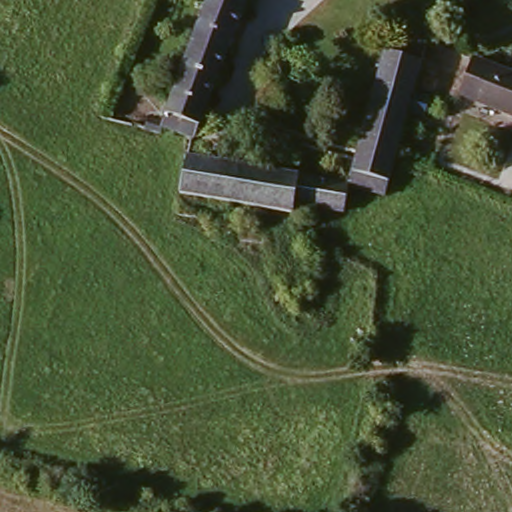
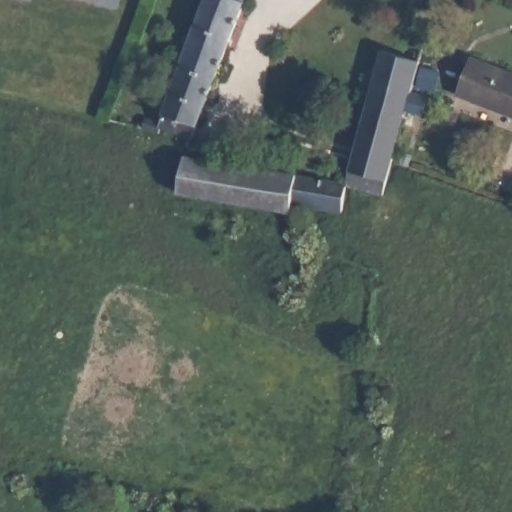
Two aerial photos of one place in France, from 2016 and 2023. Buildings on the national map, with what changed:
unchanged [(152,118),(165,121),(200,0),(236,0),(196,138),(169,131),(166,137),(149,133),(152,118)]
unchanged [(375,41),(412,48),(406,85),(426,88),(422,106),(404,103),(396,151),(389,191),(350,183),(375,41)]
unchanged [(512,114),(458,95),(470,59),(512,74),(512,114)]
unchanged [(258,203),(216,194),(177,185),(186,147),(350,183),(345,214),(316,206),(313,215),(302,213),(258,203)]
unchanged [(254,227),(211,217),(216,194),(258,203),(254,227)]

